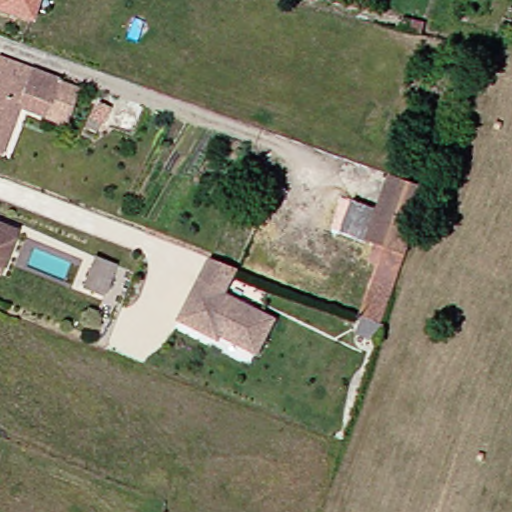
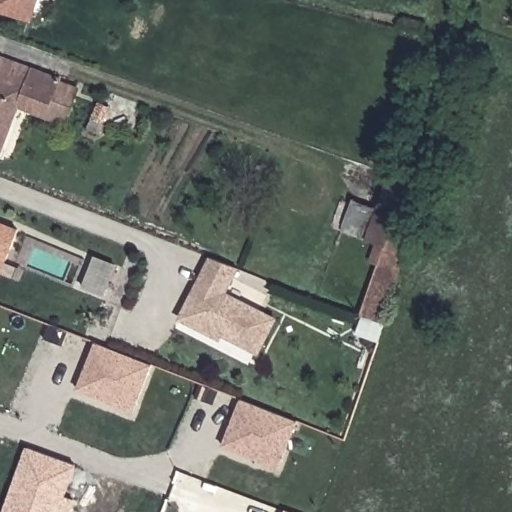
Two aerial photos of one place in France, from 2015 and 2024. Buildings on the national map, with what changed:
unchanged [(40,14),(4,2),(4,0),(44,0),(40,14)]
unchanged [(17,106),(0,152),(0,55),(60,79),(45,117),(17,106)]
unchanged [(382,347),(360,339),(367,321),(364,320),(382,269),(368,264),(375,246),(345,234),(356,203),(381,213),(395,179),(434,193),(385,328),(388,329),(382,347)]
unchanged [(2,274),(0,273),(0,222),(19,230),(2,274)]
unchanged [(115,265),(103,296),(82,288),(94,258),(115,265)]
unchanged [(281,313),(267,348),(217,328),(215,333),(187,322),(211,258),(237,268),(227,292),(281,313)]
new [(114,405),(78,390),(96,344),(152,366),(137,405),(134,413),(114,405)]
new [(255,462),(219,449),(237,402),(293,424),(277,463),(275,470),(255,462)]
new [(77,465),(66,497),(77,500),(73,512),(4,512),(27,447),(77,465)]
new [(286,512),(287,510),(292,512),(286,512)]

